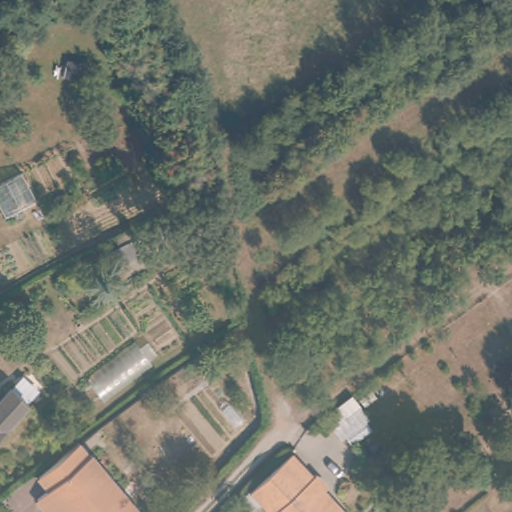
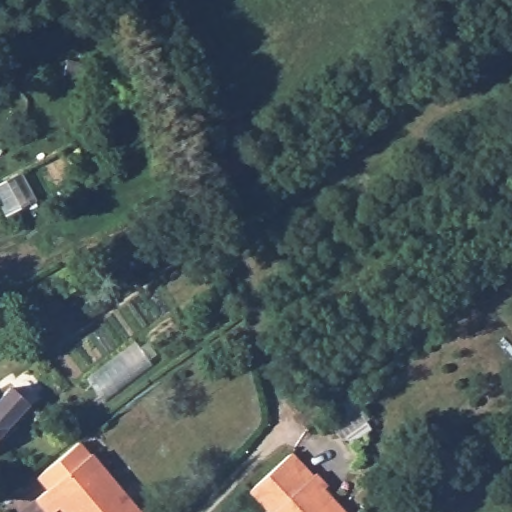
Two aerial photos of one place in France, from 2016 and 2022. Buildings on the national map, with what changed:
unchanged [(26,394),(0,427),(0,391),(9,380),(26,394)]
unchanged [(64,512),(59,506),(50,512),(46,512),(34,497),(45,487),(35,473),(76,441),(136,512),(64,512)]
unchanged [(251,486),(291,450),(313,475),(316,472),(327,486),(325,488),(337,502),(346,512),(271,512),(273,510),(251,486)]

